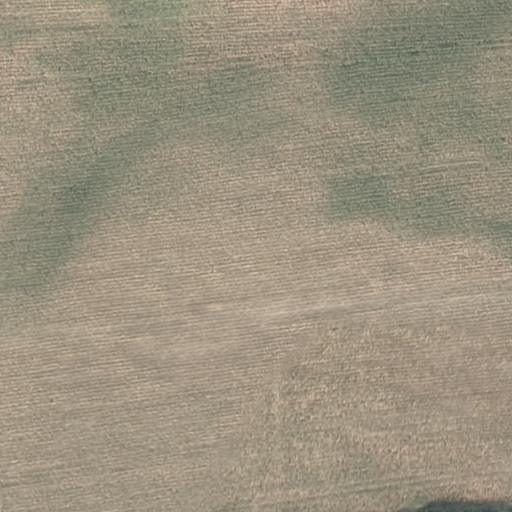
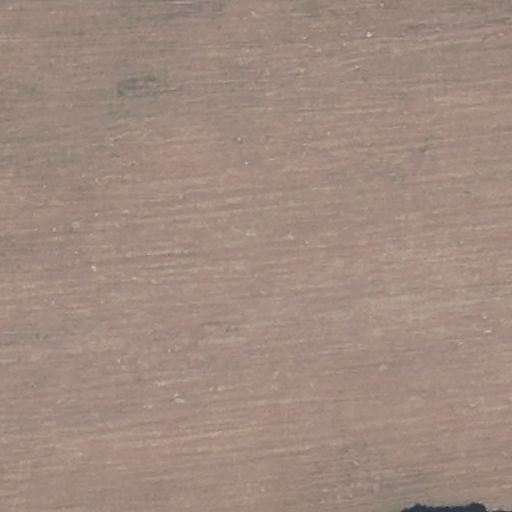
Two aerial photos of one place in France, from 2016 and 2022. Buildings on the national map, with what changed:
[]

